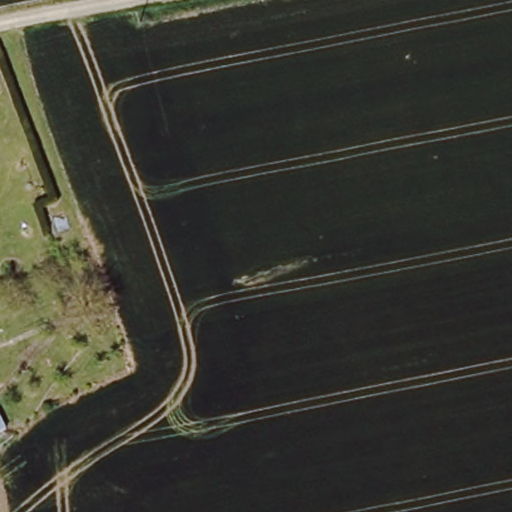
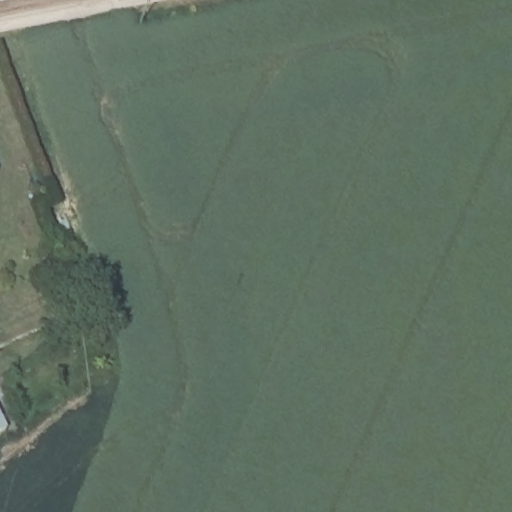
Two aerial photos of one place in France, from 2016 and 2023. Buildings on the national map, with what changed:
unchanged [(15,427),(0,434),(0,398),(15,427)]

